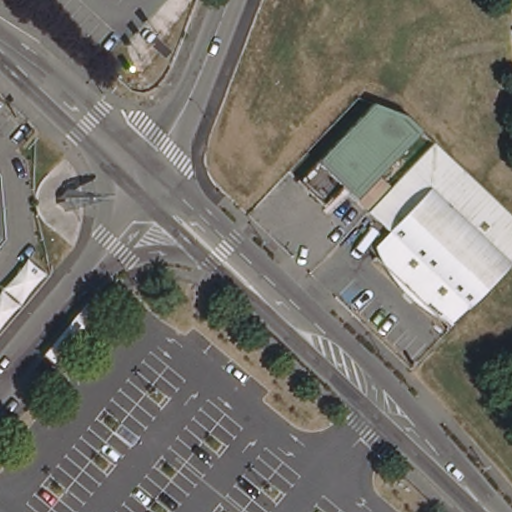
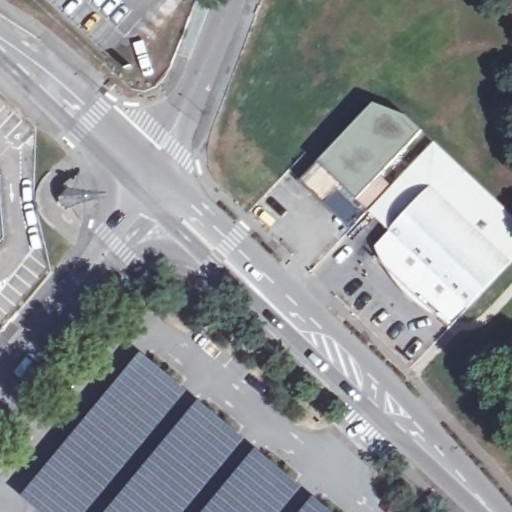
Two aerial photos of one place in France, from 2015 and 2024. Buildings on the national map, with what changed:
unchanged [(403,114),(404,114),(420,130),(354,201),(339,187),(321,204),(296,182),(371,102),(403,114)]
unchanged [(444,317),(436,314),(424,307),(412,298),(402,289),(394,279),(386,269),(376,249),(379,246),(392,232),(366,206),(417,152),(430,139),(432,136),(469,173),(512,214),(512,254),(498,269),(467,302),(454,315),(450,319),(444,317)]
unchanged [(8,238),(0,247),(0,173),(2,175),(8,238)]
new [(141,351),(188,390),(158,427),(87,512),(41,512),(19,495),(141,351)]
new [(198,399),(245,439),(184,512),(103,512),(198,399)]
new [(255,448),(302,487),(281,512),(201,512),(255,448)]
new [(313,496),(333,512),(299,512),(313,496)]

